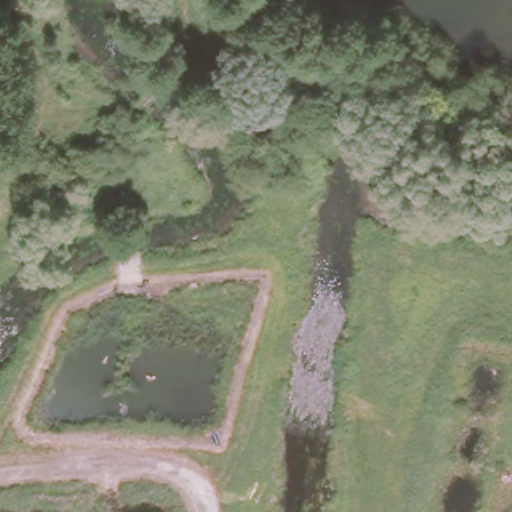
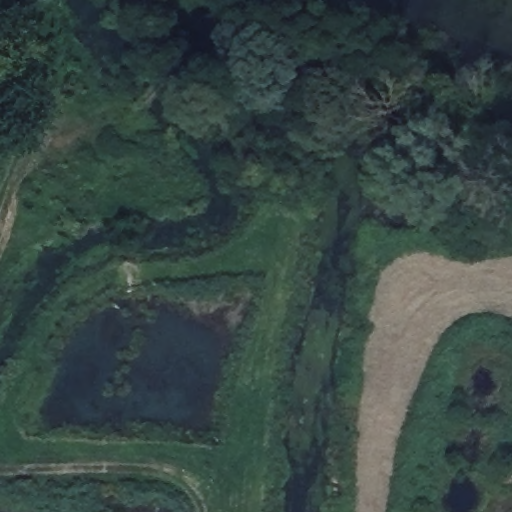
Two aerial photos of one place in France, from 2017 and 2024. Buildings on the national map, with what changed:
unchanged [(13,0),(20,0),(14,3),(13,0)]

